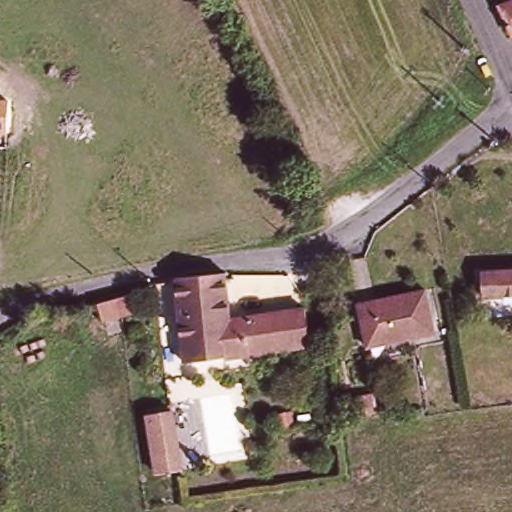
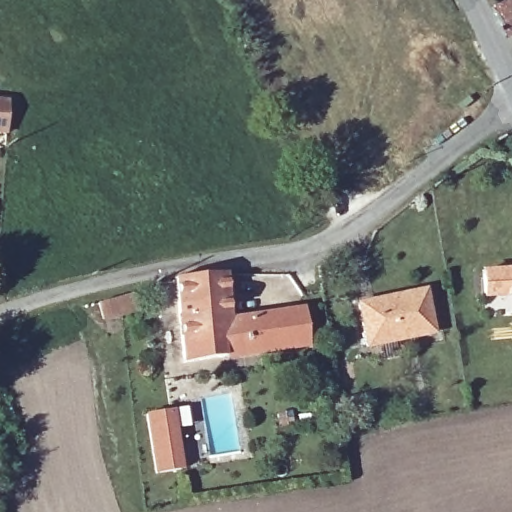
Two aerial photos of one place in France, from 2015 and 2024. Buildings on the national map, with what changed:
unchanged [(498,7),(512,2),(512,34),(498,7)]
unchanged [(8,127),(0,127),(0,101),(10,101),(8,127)]
unchanged [(486,308),(484,297),(481,270),(512,266),(512,294),(510,294),(510,307),(486,308)]
unchanged [(226,276),(233,323),(307,316),(311,349),(185,365),(175,283),(226,276)]
unchanged [(129,305),(98,311),(95,298),(125,291),(129,305)]
unchanged [(366,352),(359,308),(427,297),(433,338),(366,352)]
unchanged [(183,472),(155,477),(146,416),(174,411),(183,472)]

